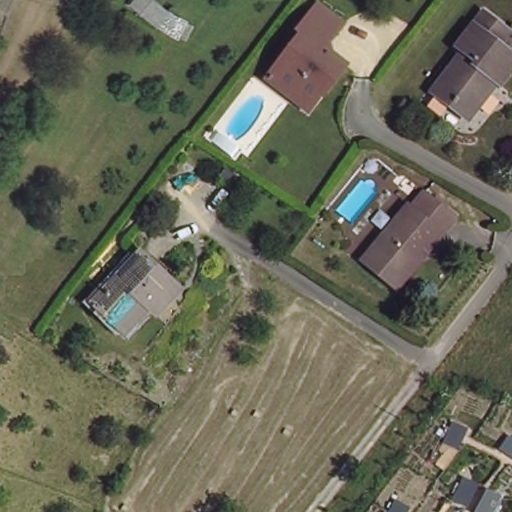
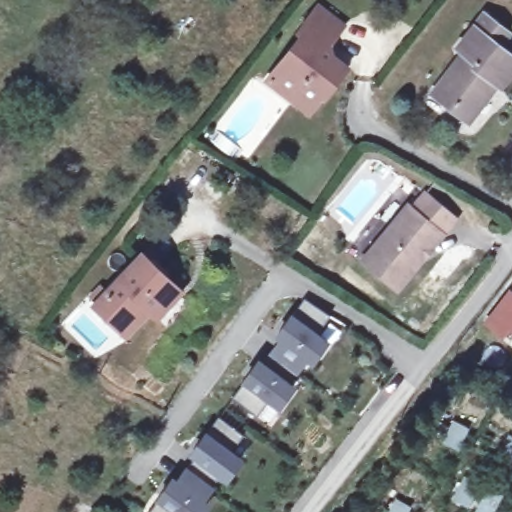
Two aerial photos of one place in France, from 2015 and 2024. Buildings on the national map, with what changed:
unchanged [(280,61),(299,40),(296,32),(314,10),(340,29),(320,53),(342,68),(314,103),(300,93),(289,104),(269,89),(260,82),(280,61)]
unchanged [(505,32),(494,46),(512,58),(512,73),(500,88),(491,83),(482,92),(489,95),(469,120),(453,106),(450,113),(431,100),(462,56),(455,49),(479,15),(505,32)]
unchanged [(444,237),(436,232),(414,257),(421,262),(395,289),(357,259),(402,206),(410,213),(426,194),(456,219),(444,237)]
unchanged [(174,286),(128,333),(97,306),(143,257),(174,286)]
new [(512,294),(512,326),(507,333),(491,322),(512,294)]
new [(258,361),(262,363),(280,337),(277,334),(303,296),(329,314),(315,332),(325,339),(312,359),(306,355),(287,381),(293,385),(280,405),(270,398),(257,416),(232,398),(258,361)]
new [(179,483),(197,456),(193,454),(219,416),(245,434),(232,452),(242,458),(228,478),(222,474),(204,500),(210,504),(205,512),(152,512),(175,480),(179,483)]

